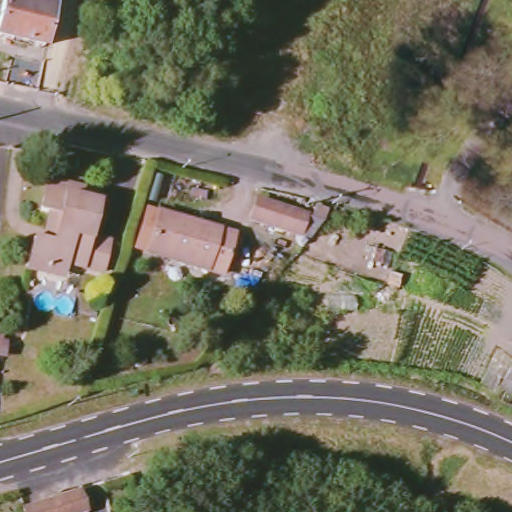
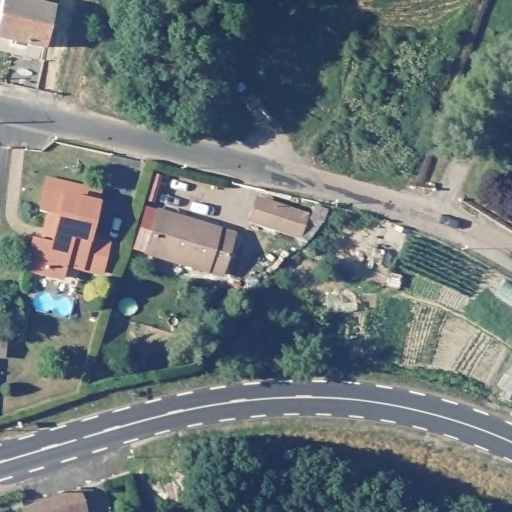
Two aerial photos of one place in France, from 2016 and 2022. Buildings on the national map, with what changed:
unchanged [(50,7),(42,46),(0,37),(0,11),(2,0),(15,0),(50,7)]
unchanged [(47,276),(25,271),(33,240),(42,240),(45,230),(48,214),(40,212),(47,180),(98,192),(87,238),(107,243),(100,273),(66,266),(65,272),(62,280),(47,276)]
unchanged [(267,200),(313,216),(306,236),(260,220),(267,200)]
unchanged [(157,214),(231,236),(220,275),(145,253),(157,214)]
unchanged [(24,512),(23,510),(77,493),(83,512),(24,512)]

